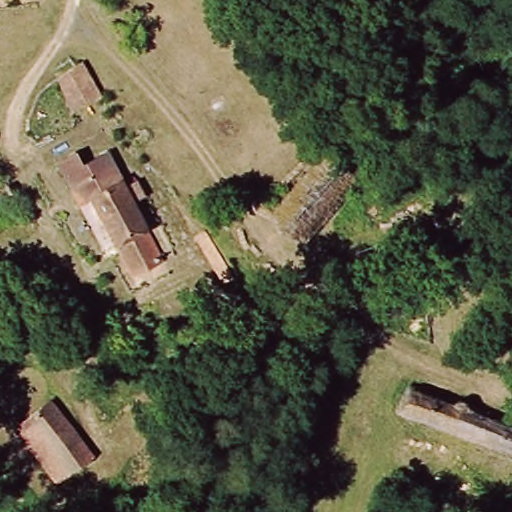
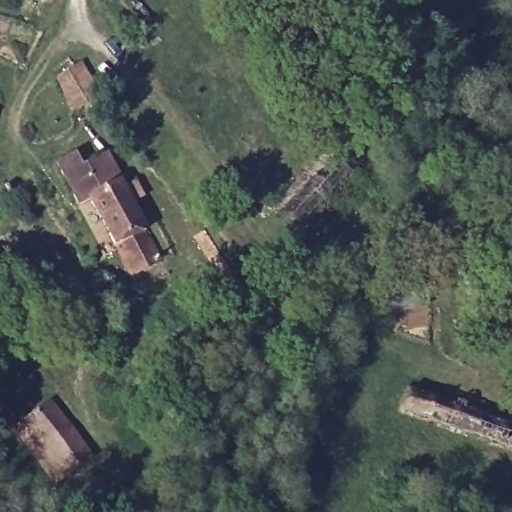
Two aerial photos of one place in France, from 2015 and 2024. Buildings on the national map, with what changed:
unchanged [(82,73),(95,101),(70,113),(57,84),(82,73)]
unchanged [(100,183),(77,195),(65,170),(89,158),(100,183)]
unchanged [(103,198),(125,188),(151,238),(145,241),(158,268),(132,281),(95,202),(103,198)]
unchanged [(25,229),(0,242),(0,196),(5,193),(25,229)]
unchanged [(386,292),(434,285),(437,314),(390,320),(386,292)]
unchanged [(408,391),(512,424),(512,463),(398,422),(408,391)]
unchanged [(88,461),(52,490),(15,436),(50,410),(88,461)]

